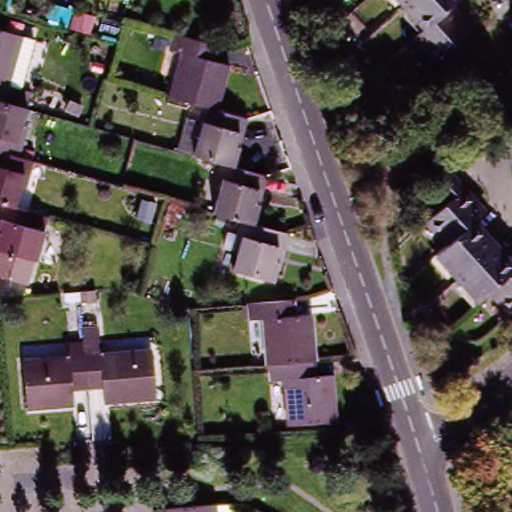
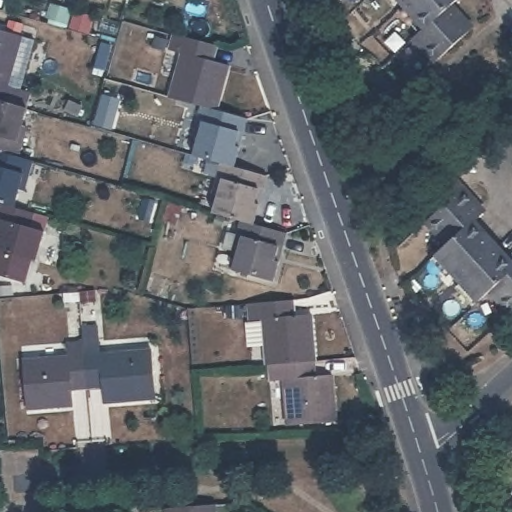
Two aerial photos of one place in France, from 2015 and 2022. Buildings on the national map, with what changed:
unchanged [(69,6),(65,21),(41,15),(45,0),(49,0),(69,6)]
unchanged [(124,0),(126,0),(125,1),(124,0)]
unchanged [(406,6),(401,0),(413,0),(406,6)]
unchanged [(454,5),(426,30),(406,6),(413,0),(460,0),(454,5)]
unchanged [(475,28),(434,65),(414,41),(426,30),(454,5),(475,28)]
unchanged [(73,12),(93,18),(88,37),(68,32),(73,12)]
unchanged [(32,41),(18,91),(14,107),(0,103),(0,31),(21,37),(32,41)]
unchanged [(215,112),(199,108),(168,99),(180,55),(167,51),(171,34),(178,36),(210,45),(206,61),(213,63),(227,67),(215,112)]
unchanged [(169,40),(166,50),(151,46),(153,36),(169,40)]
unchanged [(14,107),(26,110),(17,144),(22,146),(18,160),(0,155),(0,103),(14,107)]
unchanged [(234,148),(238,149),(233,168),(224,165),(219,164),(191,156),(176,152),(185,118),(195,121),(199,108),(215,112),(242,120),(234,148)]
unchanged [(14,209),(0,205),(0,155),(18,160),(32,164),(29,176),(23,175),(14,209)]
unchanged [(253,225),(248,224),(239,221),(227,218),(224,217),(211,214),(216,195),(221,179),(215,177),(219,164),(224,165),(233,168),(248,172),(262,176),(254,205),(258,206),(253,225)]
unchanged [(446,244),(425,221),(446,201),(431,184),(446,171),(447,171),(453,177),(458,182),(462,187),(483,210),(472,220),(446,244)]
unchanged [(164,223),(171,204),(183,209),(177,228),(164,223)]
unchanged [(35,245),(31,261),(0,252),(0,205),(14,209),(34,215),(46,218),(42,233),(39,246),(35,245)]
unchanged [(455,277),(434,254),(446,244),(472,220),(473,222),(492,241),(455,277)]
unchanged [(273,263),(277,265),(272,283),(231,271),(236,253),(222,249),(226,233),(235,235),(239,221),(248,224),(253,225),(281,233),(273,263)]
unchanged [(474,298),(455,277),(492,241),(512,261),(512,264),(486,288),(474,298)]
unchanged [(486,288),(512,264),(512,305),(506,310),(486,288)]
unchanged [(314,362),(308,363),(265,366),(262,319),(247,320),(246,306),(266,304),(287,302),(288,317),(295,316),(311,315),(314,362)]
unchanged [(72,407),(26,410),(22,360),(68,357),(67,344),(82,342),(81,332),(80,329),(97,328),(98,341),(99,354),(151,350),(155,400),(102,404),(101,390),(101,382),(85,384),(70,385),(71,392),(72,407)]
unchanged [(335,423),(285,427),(282,380),(266,381),(265,366),(308,363),(309,378),(315,377),(331,376),(335,423)]
unchanged [(215,506),(215,512),(165,512),(165,510),(195,507),(215,506)]

